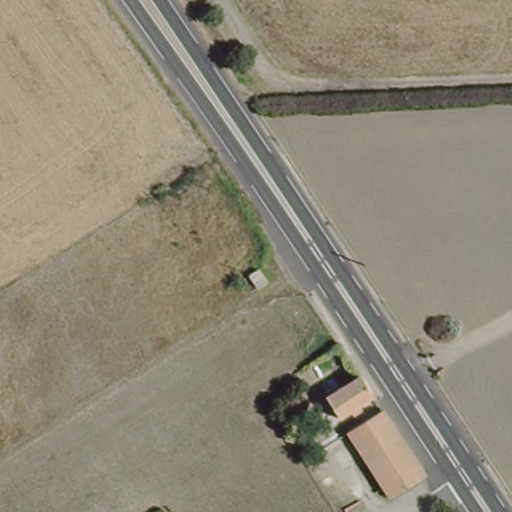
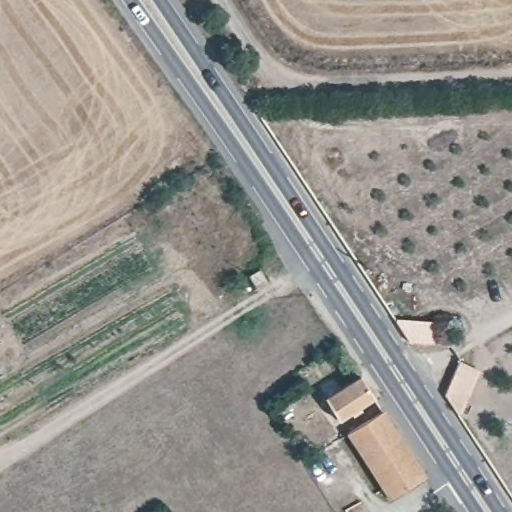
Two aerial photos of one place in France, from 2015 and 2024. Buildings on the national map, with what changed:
unchanged [(364,377),(378,397),(344,420),(331,400),(364,377)]
unchanged [(354,436),(389,413),(431,477),(395,501),(354,436)]

